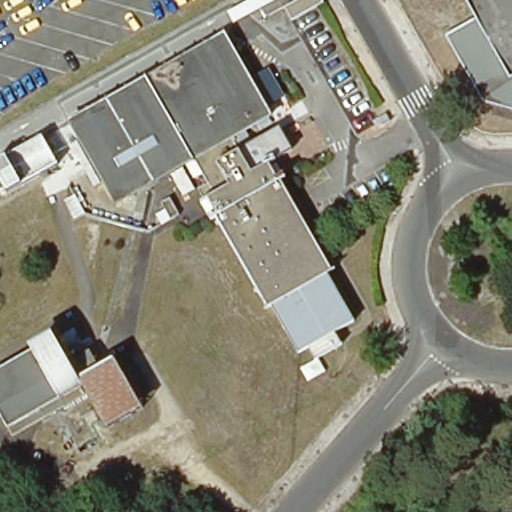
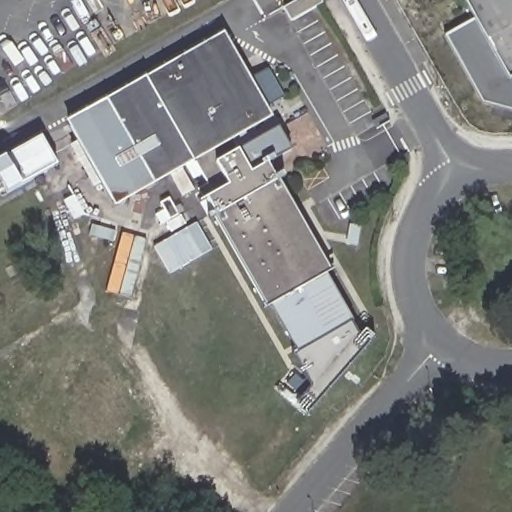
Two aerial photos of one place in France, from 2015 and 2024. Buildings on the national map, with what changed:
unchanged [(322,5),(292,22),(285,9),(302,0),(320,0),(322,5)]
unchanged [(475,17),(466,2),(470,0),(512,0),(512,79),(511,80),(475,17)]
unchanged [(445,36),(475,17),(511,80),(512,79),(512,111),(482,101),(445,36)]
unchanged [(322,269),(348,317),(330,328),(335,338),(309,353),(303,343),(293,349),(266,301),(263,303),(203,197),(210,193),(190,156),(109,200),(65,120),(219,33),(264,111),(245,123),(252,137),(274,125),(286,146),(264,159),(272,172),(276,169),(279,174),(275,177),(326,266),(322,269)]
unchanged [(377,129),(373,121),(384,114),(389,122),(377,129)]
unchanged [(41,134),(57,165),(0,194),(0,157),(41,134)]
demolished [(104,427),(86,395),(12,437),(5,427),(0,418),(0,364),(30,346),(55,332),(78,375),(113,358),(140,406),(104,427)]

